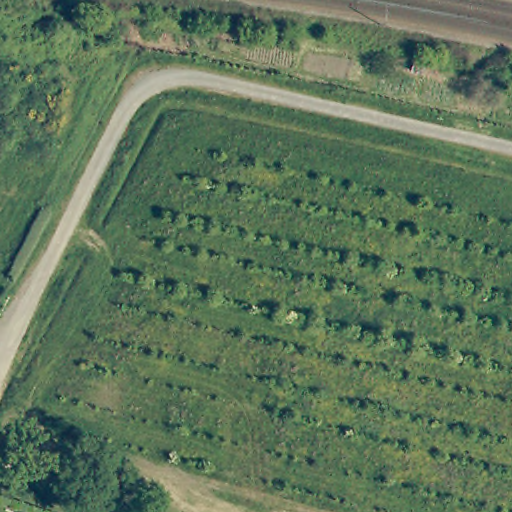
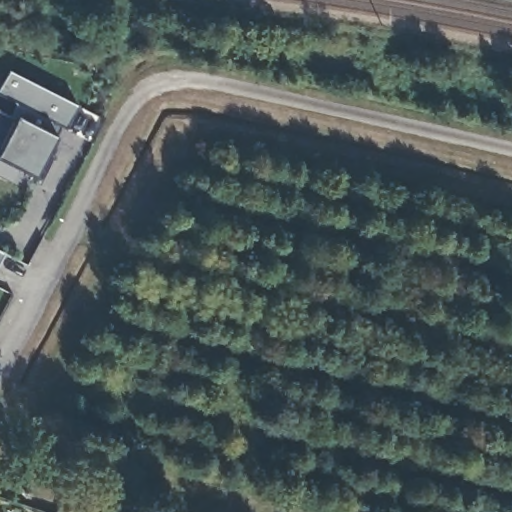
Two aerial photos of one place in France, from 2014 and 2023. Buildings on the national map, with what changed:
new [(0,157),(0,111),(7,115),(14,103),(0,96),(0,82),(7,70),(74,104),(64,127),(57,124),(52,135),(47,144),(54,147),(38,178),(0,157)]
new [(1,251),(0,253),(0,251),(1,251)]

